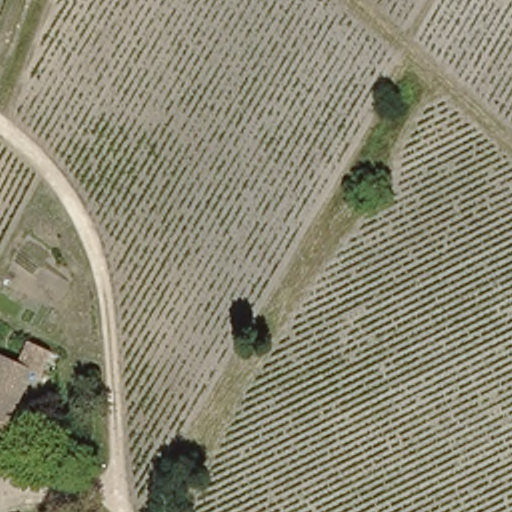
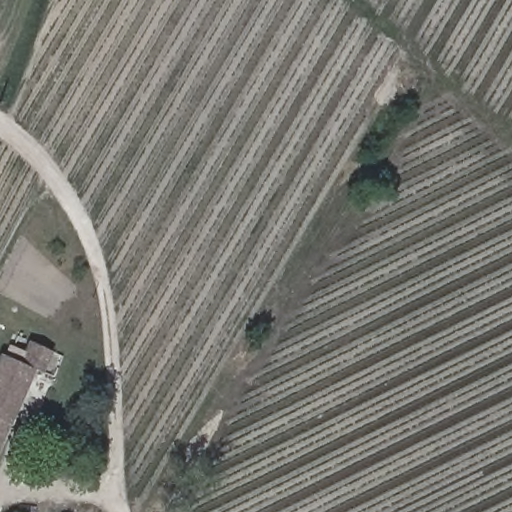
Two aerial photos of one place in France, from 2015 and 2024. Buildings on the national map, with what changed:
unchanged [(21,360),(30,340),(52,351),(42,374),(32,369),(0,440),(0,354),(1,351),(21,360)]

